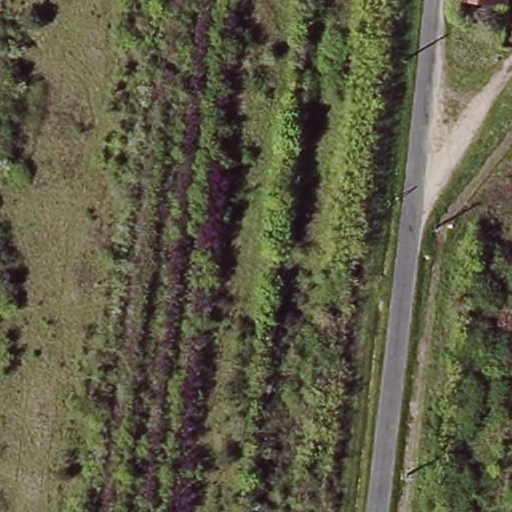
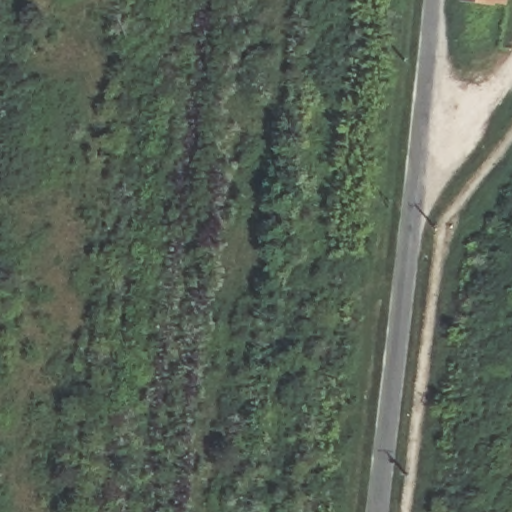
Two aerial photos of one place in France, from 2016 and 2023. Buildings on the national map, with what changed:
unchanged [(493,11),(489,31),(445,25),(448,0),(507,0),(506,10),(493,11)]

